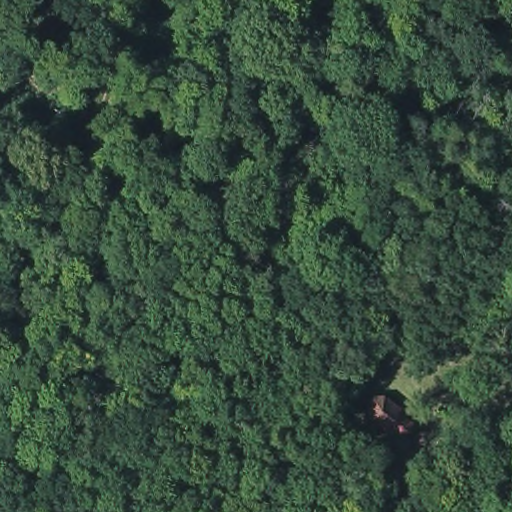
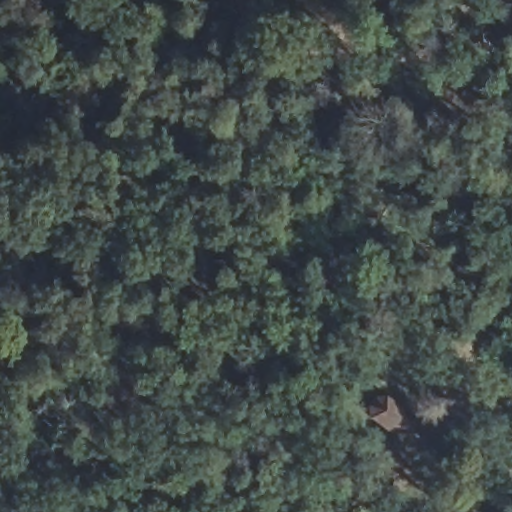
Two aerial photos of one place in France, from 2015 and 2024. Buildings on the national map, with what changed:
unchanged [(417,428),(408,440),(397,430),(394,432),(379,420),(375,411),(380,404),(393,403),(407,416),(405,417),(417,428)]

